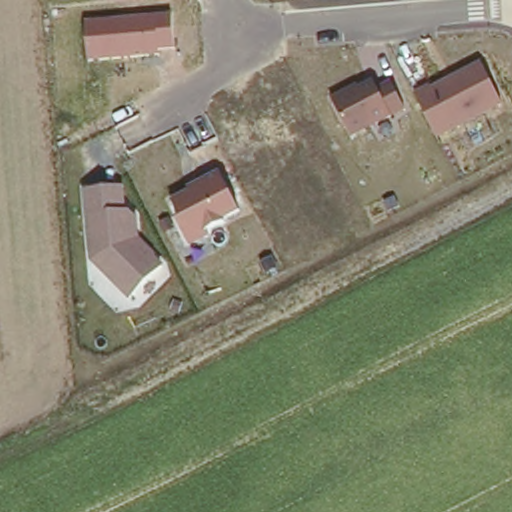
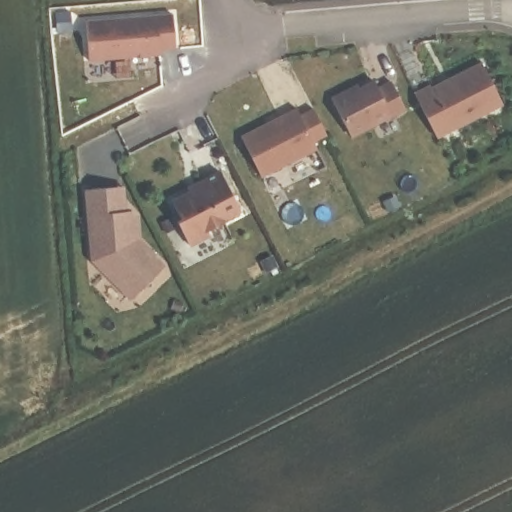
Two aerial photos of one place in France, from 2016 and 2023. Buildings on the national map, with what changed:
unchanged [(175,51),(160,52),(160,56),(88,63),(84,22),(174,14),(175,51)]
unchanged [(505,104),(437,139),(414,94),(432,84),(433,87),(480,62),(505,104)]
unchanged [(378,88),(392,81),(407,112),(351,141),(329,97),(360,83),(362,87),(375,81),(378,88)]
new [(295,108),(298,116),(312,109),(325,135),(312,142),(315,149),(260,177),(239,136),(295,108)]
unchanged [(244,213),(207,230),(211,238),(190,248),(175,222),(181,219),(170,201),(190,190),(187,186),(220,170),(244,213)]
unchanged [(125,188),(127,208),(139,219),(140,238),(166,264),(130,302),(91,262),(85,191),(125,188)]

